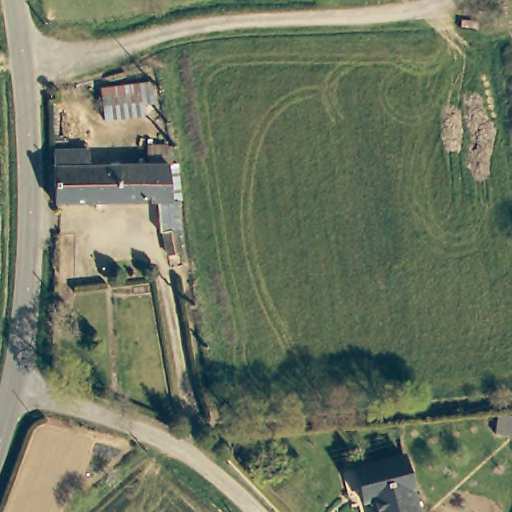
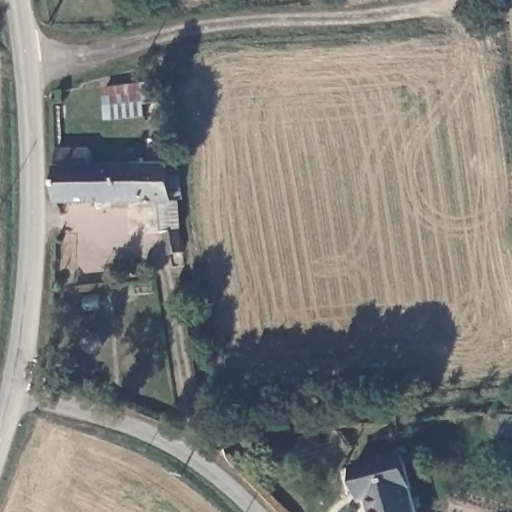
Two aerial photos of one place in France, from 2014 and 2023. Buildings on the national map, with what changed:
unchanged [(141,82),(148,115),(109,122),(101,86),(141,82)]
unchanged [(180,252),(169,254),(160,232),(156,199),(60,200),(62,149),(94,147),(94,165),(169,161),(180,252)]
unchanged [(405,455),(420,512),(377,512),(374,500),(366,502),(358,468),(405,455)]

